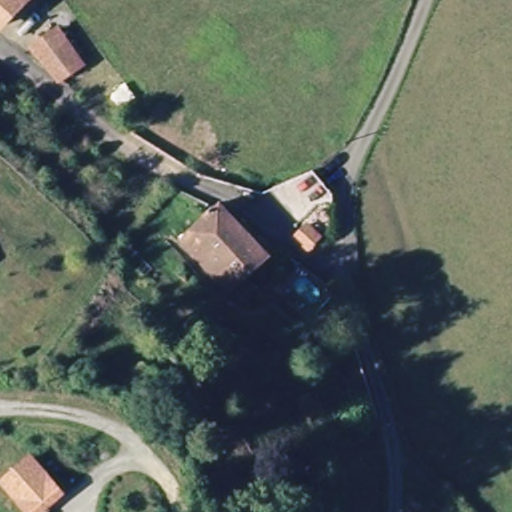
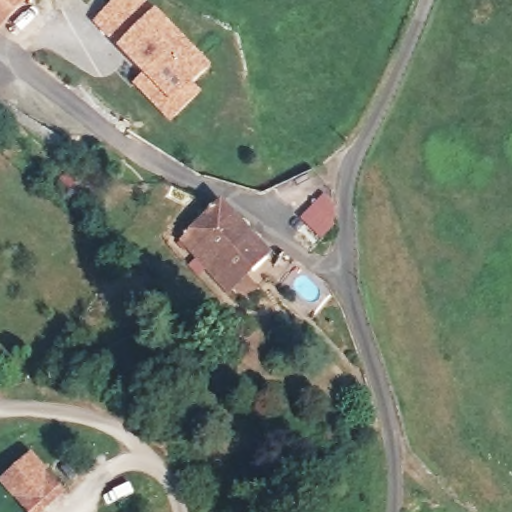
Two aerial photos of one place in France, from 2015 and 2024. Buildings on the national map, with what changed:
unchanged [(0,22),(0,0),(23,0),(0,22)]
new [(155,9),(211,66),(193,84),(201,93),(170,124),(132,85),(144,75),(120,48),(93,23),(117,0),(145,0),(155,9)]
demolished [(67,27),(91,66),(61,85),(39,46),(67,27)]
unchanged [(269,200),(308,186),(331,210),(330,247),(322,254),(269,200)]
unchanged [(270,252),(230,292),(183,241),(219,209),(225,205),(233,210),(270,252)]
unchanged [(24,453),(55,488),(28,512),(0,480),(0,475),(24,453)]

